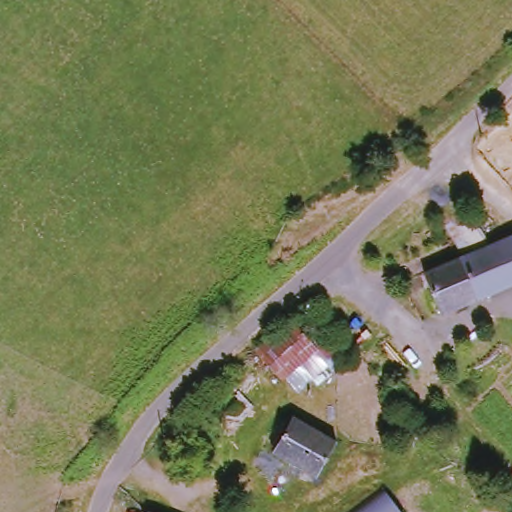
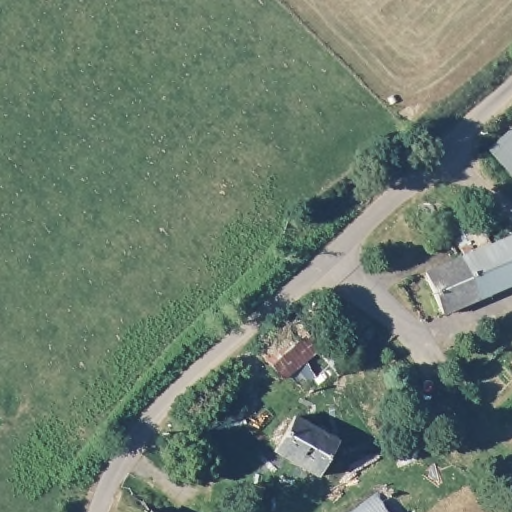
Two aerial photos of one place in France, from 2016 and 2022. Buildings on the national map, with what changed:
new [(490,150),(512,129),(512,175),(490,150)]
unchanged [(425,282),(512,245),(512,295),(442,325),(425,282)]
unchanged [(339,380),(327,365),(317,354),(282,385),(257,355),(292,325),(297,330),(306,321),(338,356),(350,370),(339,380)]
unchanged [(280,455),(300,421),(344,447),(322,482),(280,455)]
unchanged [(404,512),(348,512),(385,485),(404,512)]
unchanged [(153,512),(141,512),(143,507),(153,512)]

